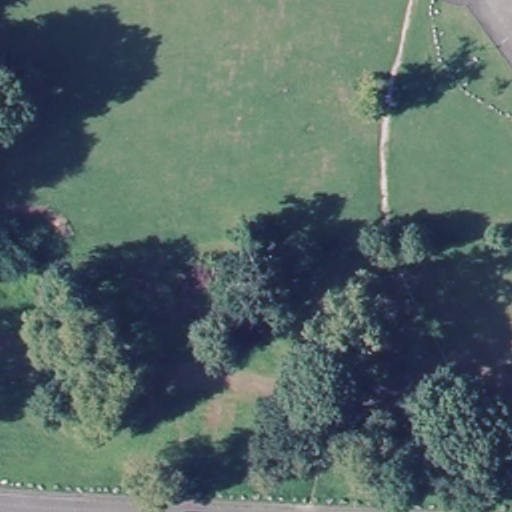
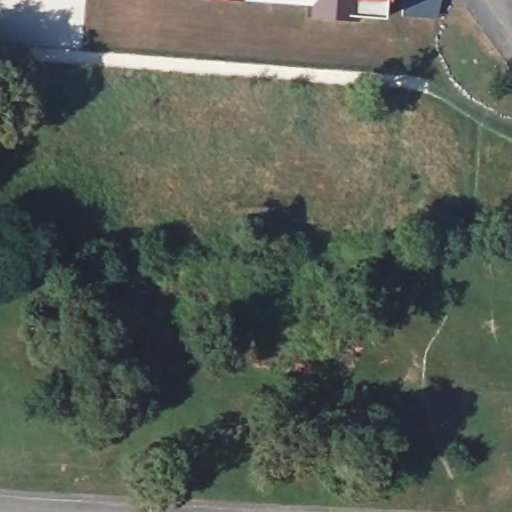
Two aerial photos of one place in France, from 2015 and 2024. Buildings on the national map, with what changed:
new [(308,12),(308,7),(203,0),(384,0),(382,16),(308,12)]

